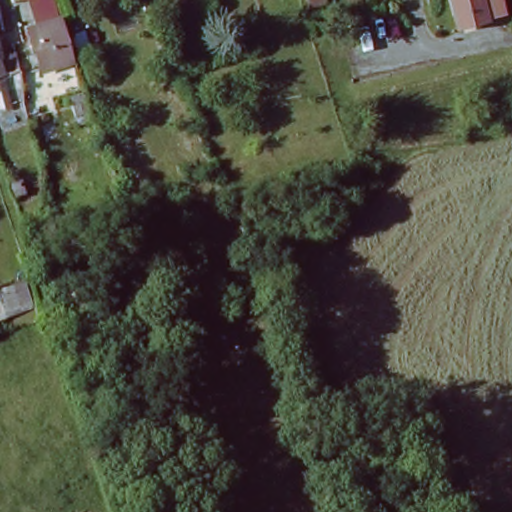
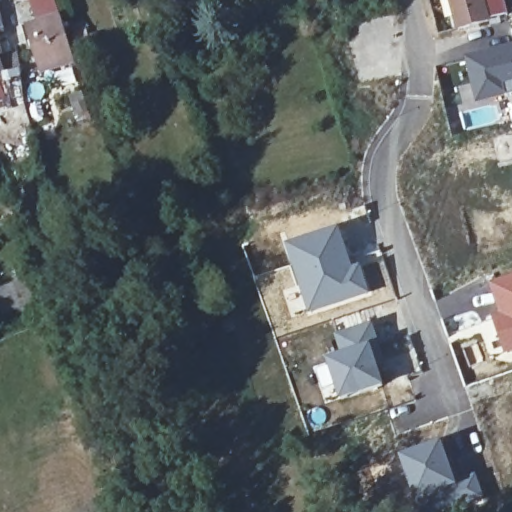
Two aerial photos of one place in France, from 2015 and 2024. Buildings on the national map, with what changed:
new [(14,3),(13,0),(24,0),(14,3)]
new [(62,14),(77,64),(41,74),(26,26),(34,23),(28,0),(57,0),(62,14)]
unchanged [(484,27),(455,32),(447,0),(478,0),(484,27)]
unchanged [(503,22),(484,27),(478,0),(497,0),(503,22)]
demolished [(73,53),(43,63),(40,54),(36,41),(65,30),(69,41),(73,53)]
unchanged [(5,52),(1,54),(4,62),(0,63),(0,37),(5,52)]
new [(512,94),(474,105),(466,56),(512,45),(512,94)]
new [(4,62),(1,54),(5,52),(16,54),(20,70),(4,74),(14,108),(7,110),(0,88),(0,63),(4,62)]
new [(340,228),(354,267),(362,264),(370,295),(307,315),(285,247),(340,228)]
new [(512,351),(504,354),(490,316),(499,313),(490,286),(512,278),(512,351)]
new [(26,281),(36,306),(6,317),(0,302),(0,290),(26,281)]
new [(340,400),(326,361),(341,355),(334,334),(372,320),(380,343),(373,345),(385,384),(340,400)]
new [(459,484),(477,475),(485,498),(457,512),(423,512),(412,491),(400,457),(442,441),(459,484)]

